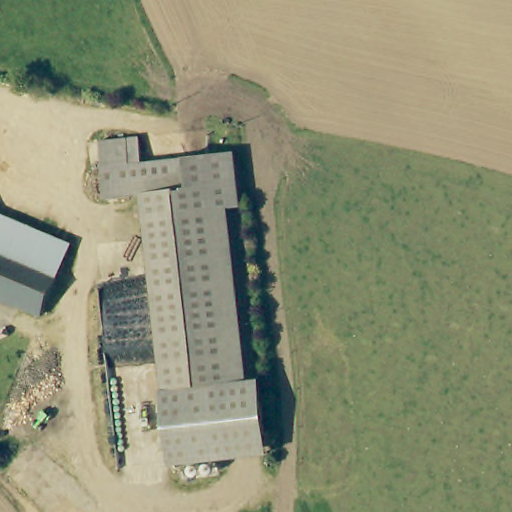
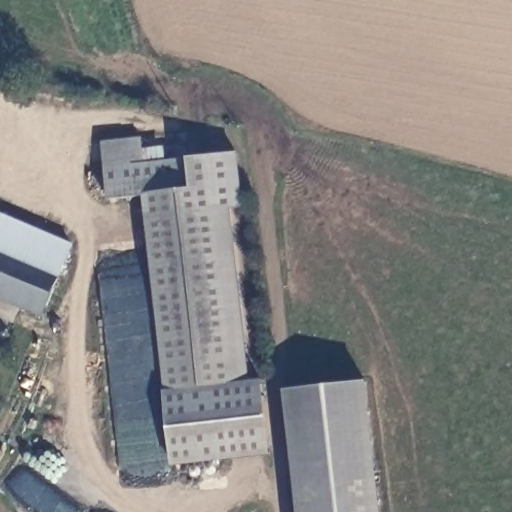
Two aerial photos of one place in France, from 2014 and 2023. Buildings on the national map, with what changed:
unchanged [(142,192),(106,196),(100,137),(137,134),(140,160),(185,154),(189,187),(142,192)]
unchanged [(142,192),(189,187),(185,154),(234,149),(240,201),(215,204),(235,377),(164,386),(142,192)]
unchanged [(36,314),(0,299),(0,216),(66,244),(36,314)]
unchanged [(235,377),(261,375),(269,448),(173,460),(164,386),(235,377)]
new [(365,380),(380,512),(297,512),(283,389),(365,380)]

